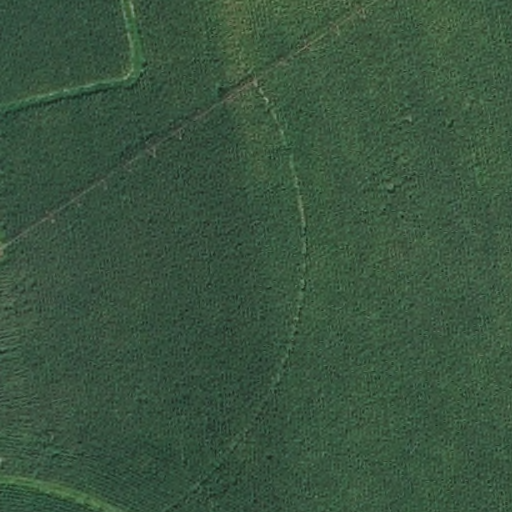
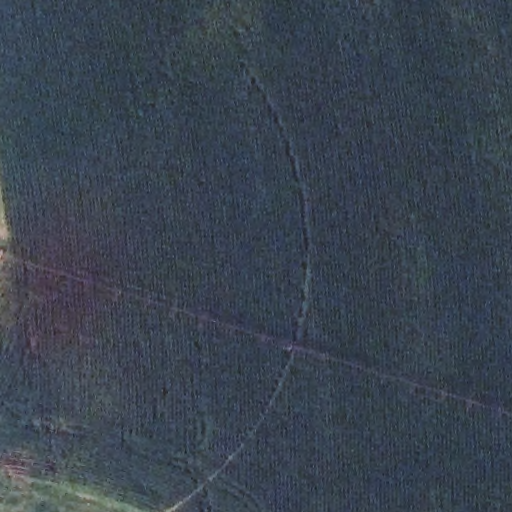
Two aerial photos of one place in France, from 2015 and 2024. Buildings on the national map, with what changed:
[]

